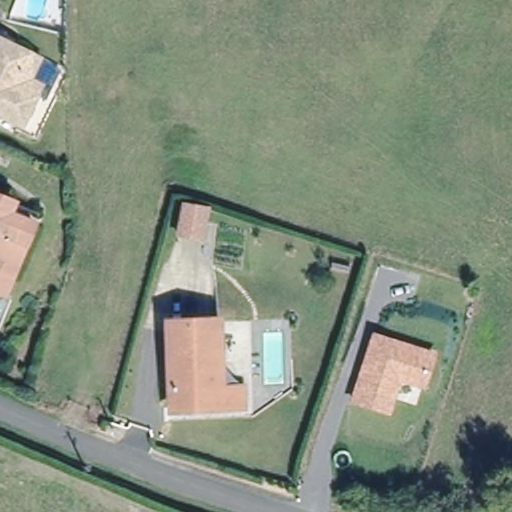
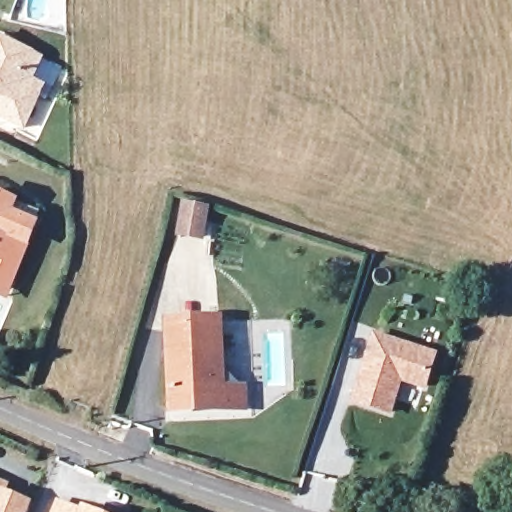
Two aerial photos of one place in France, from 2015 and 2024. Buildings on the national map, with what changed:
unchanged [(0,37),(35,54),(45,59),(35,80),(47,85),(42,96),(28,126),(0,113),(0,37)]
unchanged [(0,288),(0,270),(0,194),(16,200),(13,210),(27,216),(37,220),(31,238),(17,276),(11,292),(0,288)]
unchanged [(187,202),(205,208),(196,235),(179,230),(187,202)]
unchanged [(169,329),(214,327),(216,393),(242,392),(242,410),(171,413),(169,329)]
unchanged [(437,352),(426,390),(400,383),(391,416),(350,403),(371,332),(437,352)]
new [(31,502),(28,512),(0,512),(0,481),(9,484),(5,491),(31,502)]
new [(78,510),(80,506),(95,512),(51,512),(55,501),(78,510)]

